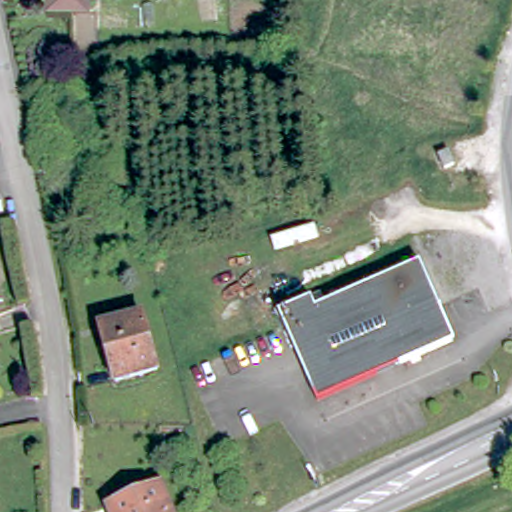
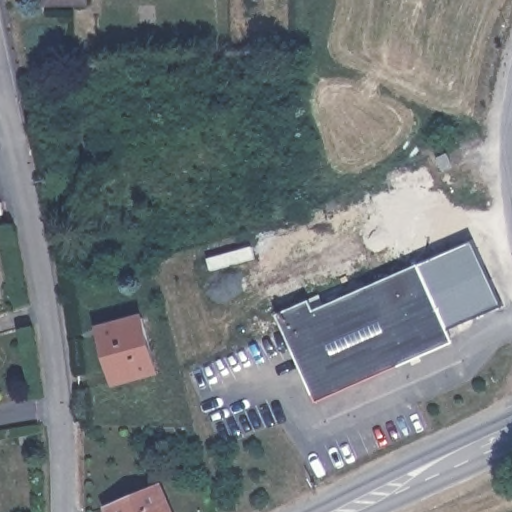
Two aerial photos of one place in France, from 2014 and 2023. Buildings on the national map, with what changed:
unchanged [(71,0),(91,0),(90,1),(71,0)]
unchanged [(439,167),(437,164),(448,159),(455,174),(445,180),(439,167)]
new [(450,328),(420,264),(473,240),(502,303),(450,328)]
unchanged [(318,295),(324,307),(420,264),(452,333),(454,338),(404,361),(322,399),(282,310),(318,295)]
unchanged [(119,376),(106,332),(123,327),(120,317),(142,310),(159,363),(119,376)]
unchanged [(172,512),(109,512),(161,486),(172,512)]

